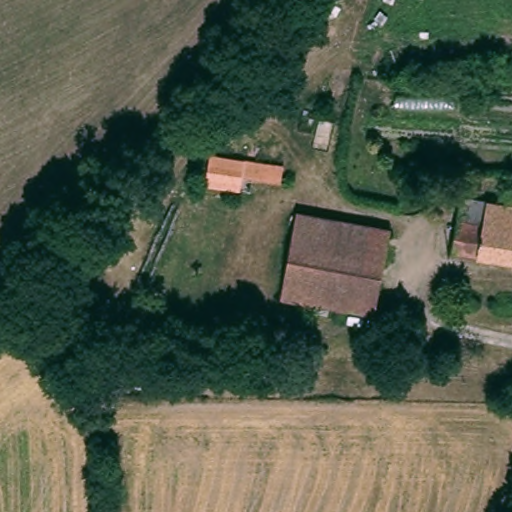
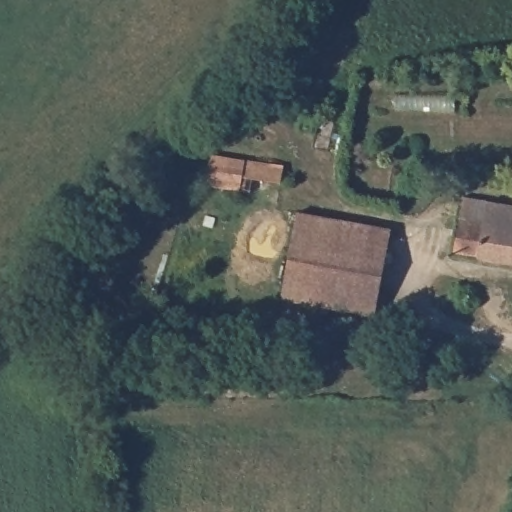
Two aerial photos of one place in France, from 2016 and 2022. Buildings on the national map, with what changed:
unchanged [(260,162),(280,167),(276,184),(236,176),(234,188),(201,182),(207,152),(260,162)]
unchanged [(512,207),(512,263),(454,254),(462,207),(464,200),(491,204),(512,207)]
unchanged [(388,232),(377,317),(281,305),(295,219),(388,232)]

